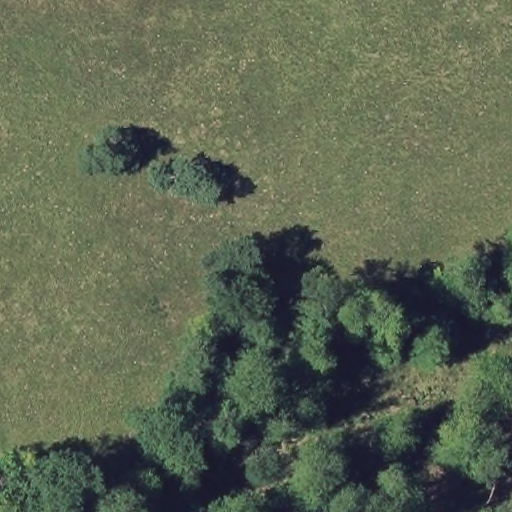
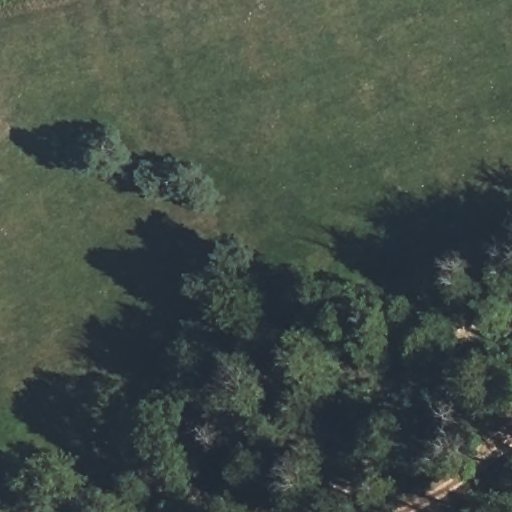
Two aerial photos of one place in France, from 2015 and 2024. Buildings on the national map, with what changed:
[]

